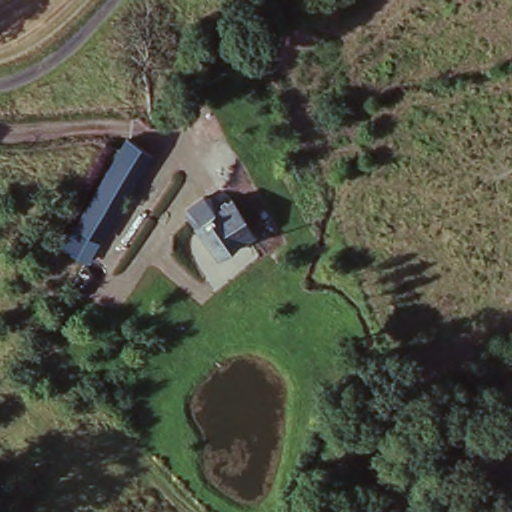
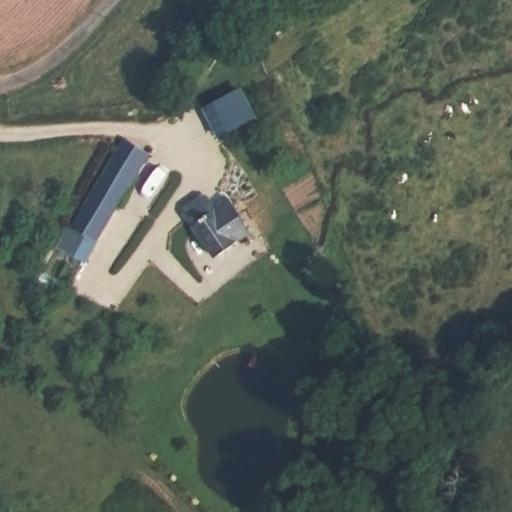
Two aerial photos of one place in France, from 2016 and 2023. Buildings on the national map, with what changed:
new [(221,138),(205,109),(242,89),(259,118),(221,138)]
unchanged [(117,158),(129,140),(150,157),(126,197),(102,183),(117,158)]
unchanged [(126,197),(87,261),(77,257),(65,280),(55,274),(65,252),(58,247),(71,225),(76,225),(102,183),(126,197)]
unchanged [(231,204),(250,240),(235,250),(216,263),(194,231),(231,204)]

